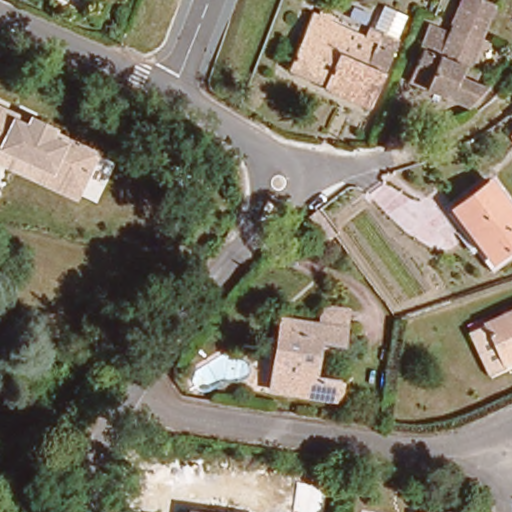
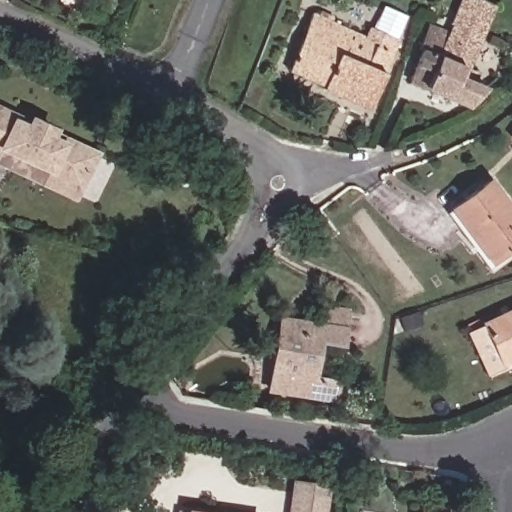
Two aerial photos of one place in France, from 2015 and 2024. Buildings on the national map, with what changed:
unchanged [(327,86),(326,79),(290,66),(310,9),(365,33),(369,20),(372,21),(379,0),(405,10),(397,32),(370,101),(327,86)]
unchanged [(425,17),(444,25),(455,0),(491,0),(467,57),(479,62),(474,74),(488,80),(466,101),(408,77),(420,48),(413,45),(423,20),(425,17)]
unchanged [(64,148),(66,144),(97,158),(81,193),(50,178),(52,173),(39,167),(35,176),(14,166),(18,157),(5,152),(4,156),(0,155),(0,113),(20,122),(17,127),(30,133),(34,124),(55,134),(51,142),(64,148)]
unchanged [(512,140),(512,142),(511,141),(512,140)]
unchanged [(487,176),(512,219),(512,238),(481,255),(449,198),(487,176)]
unchanged [(323,223),(330,234),(317,242),(300,219),(314,208),(323,223)]
unchanged [(317,320),(320,302),(345,306),(343,324),(341,339),(314,335),(309,372),(340,377),(337,393),(263,383),(267,353),(272,323),(273,314),(317,320)]
unchanged [(512,306),(512,356),(507,358),(488,317),(512,306)]
unchanged [(507,358),(486,368),(467,327),(488,317),(507,358)]
new [(330,486),(326,512),(287,512),(291,480),(330,486)]
unchanged [(207,512),(188,512),(189,509),(207,512)]

